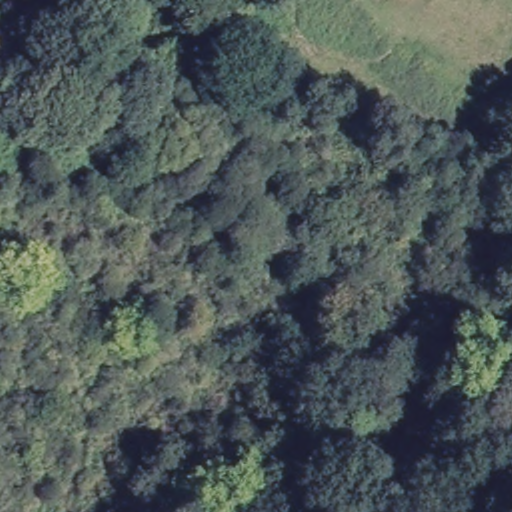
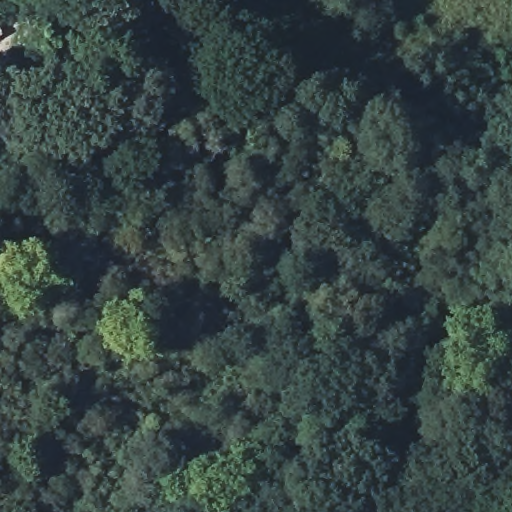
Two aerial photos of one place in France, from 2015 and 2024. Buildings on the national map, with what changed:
unchanged [(20,33),(0,13),(11,0),(44,0),(20,33)]

